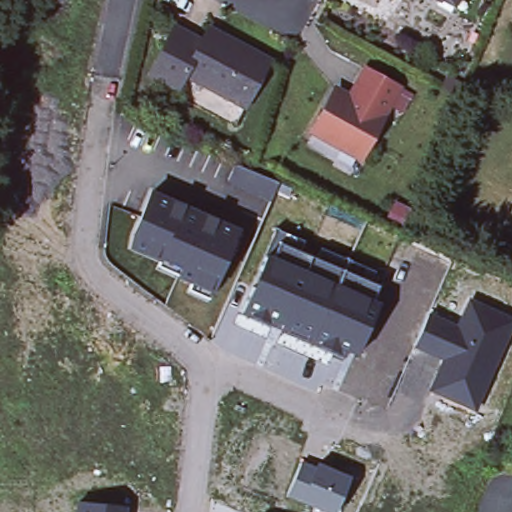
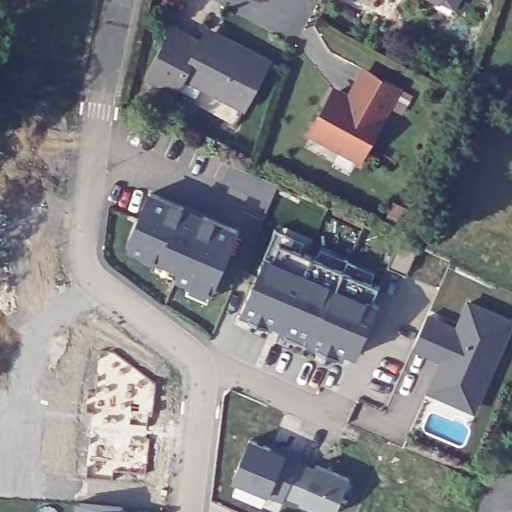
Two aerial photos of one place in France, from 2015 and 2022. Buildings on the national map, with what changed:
unchanged [(453,0),(452,3),(446,0),(453,0)]
unchanged [(172,30),(199,44),(202,39),(207,29),(220,36),(269,61),(244,109),(183,78),(175,93),(147,79),(172,30)]
unchanged [(398,86),(383,115),(352,99),(367,69),(398,86)]
unchanged [(175,93),(183,78),(244,109),(235,126),(175,95),(175,93)]
unchanged [(362,155),(314,130),(337,90),(352,99),(383,115),(362,155)]
unchanged [(239,229),(215,290),(130,250),(152,187),(239,229)]
unchanged [(267,256),(278,229),(377,270),(372,282),(379,285),(374,298),(382,301),(357,355),(348,350),(344,358),(242,312),(267,256)]
unchanged [(482,397),(461,387),(455,401),(432,392),(443,359),(416,346),(430,314),(458,327),(470,301),(512,320),(512,327),(482,397)]
new [(232,478),(251,436),(287,450),(284,456),(300,465),(288,495),(285,502),(268,493),(232,478)]
unchanged [(302,461),(315,466),(317,462),(351,477),(336,512),(327,512),(302,501),(288,495),(302,461)]
unchanged [(75,502),(127,505),(127,512),(74,512),(75,502)]

